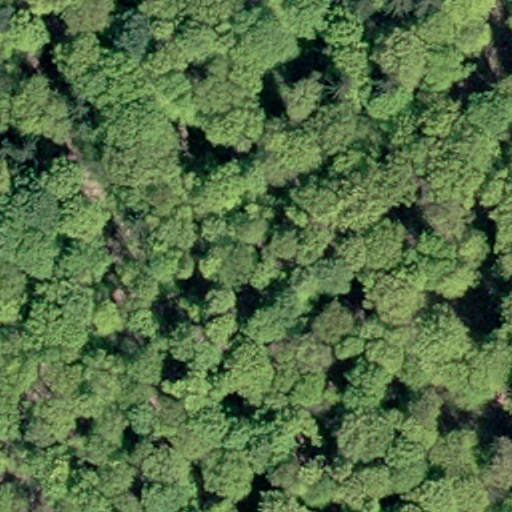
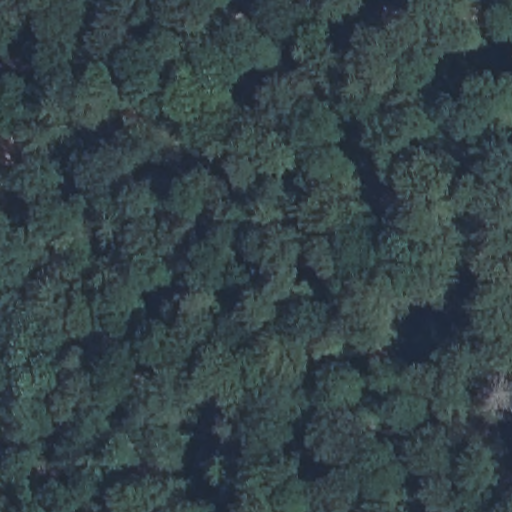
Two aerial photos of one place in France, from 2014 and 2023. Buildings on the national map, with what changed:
[]

